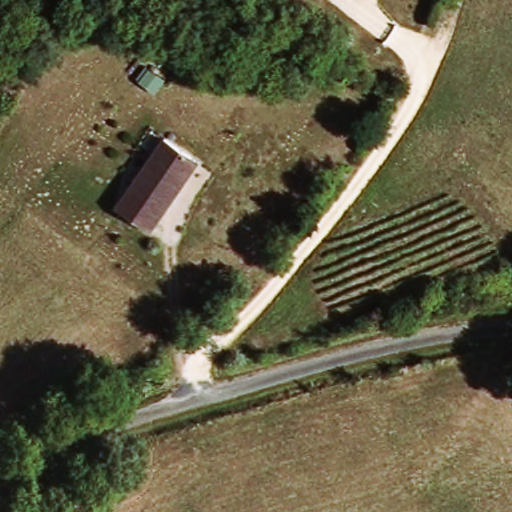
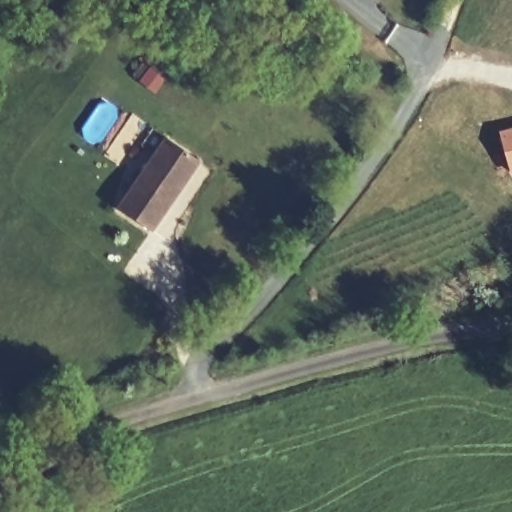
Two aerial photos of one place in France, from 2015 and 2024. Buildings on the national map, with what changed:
new [(510,178),(500,134),(512,130),(512,177),(510,178)]
unchanged [(159,233),(123,216),(157,141),(193,156),(159,233)]

